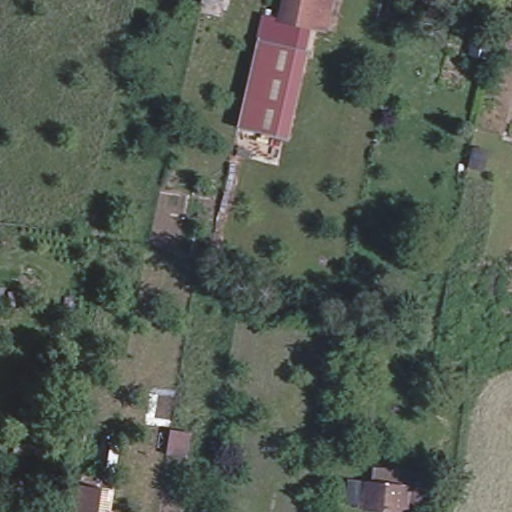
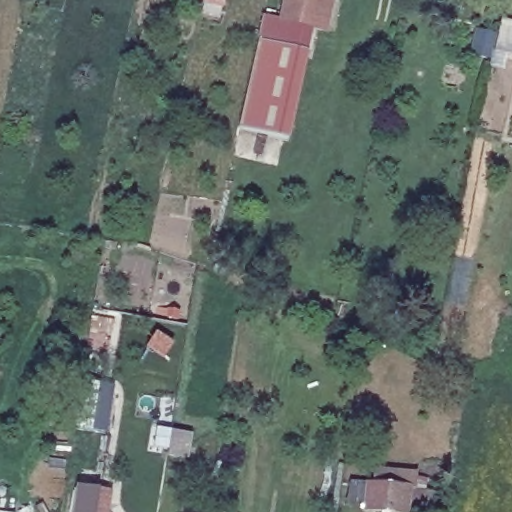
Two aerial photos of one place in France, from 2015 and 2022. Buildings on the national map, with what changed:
unchanged [(274,21),(278,0),(333,0),(328,31),(274,21)]
unchanged [(512,19),(512,53),(494,50),(501,17),(512,19)]
unchanged [(290,137),(241,126),(259,37),(309,49),(290,137)]
unchanged [(337,460),(417,471),(407,512),(388,512),(341,503),(337,460)]
unchanged [(75,481),(98,484),(93,508),(104,510),(104,512),(71,512),(75,481)]

